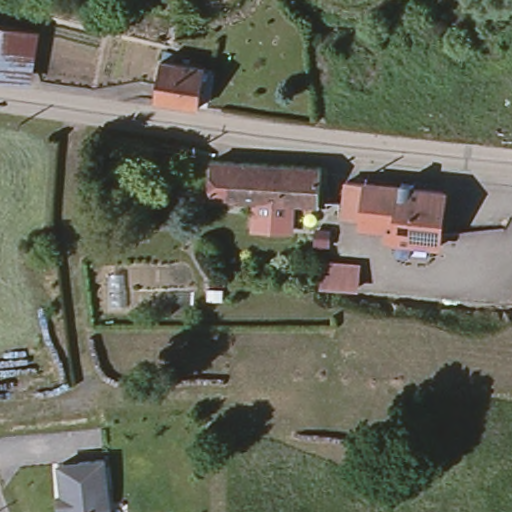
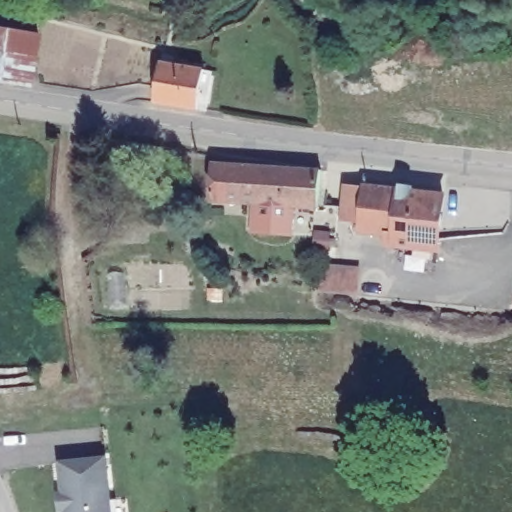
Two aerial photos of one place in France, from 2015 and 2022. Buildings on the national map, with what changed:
unchanged [(32,57),(18,56),(0,52),(0,24),(38,31),(32,57)]
unchanged [(14,81),(0,78),(0,52),(18,56),(14,81)]
unchanged [(202,69),(211,70),(206,92),(198,91),(196,107),(151,101),(158,61),(202,67),(202,69)]
unchanged [(201,204),(204,164),(256,168),(253,207),(201,204)]
unchanged [(314,174),(311,212),(253,207),(256,168),(314,174)]
unchanged [(444,194),(439,249),(395,246),(396,235),(361,232),(361,223),(341,222),(344,187),(444,194)]
unchanged [(361,263),(358,295),(318,292),(321,261),(361,263)]
unchanged [(60,463),(105,461),(108,512),(63,512),(60,463)]

